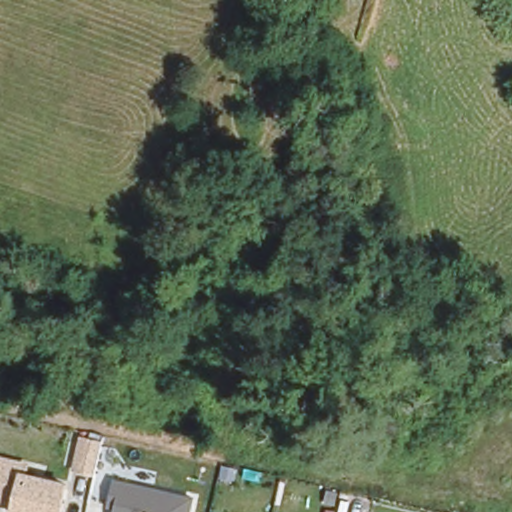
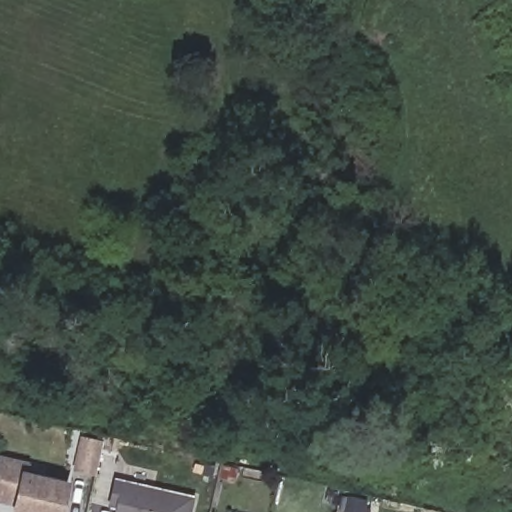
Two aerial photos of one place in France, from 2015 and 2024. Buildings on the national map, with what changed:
unchanged [(70,489),(65,512),(13,512),(15,507),(0,503),(0,455),(32,462),(30,473),(71,481),(84,432),(107,438),(94,491),(70,489)]
unchanged [(194,512),(115,512),(115,511),(109,509),(116,479),(197,497),(194,512)]

